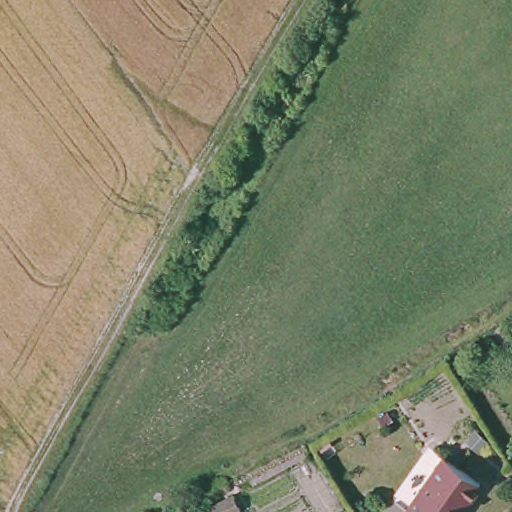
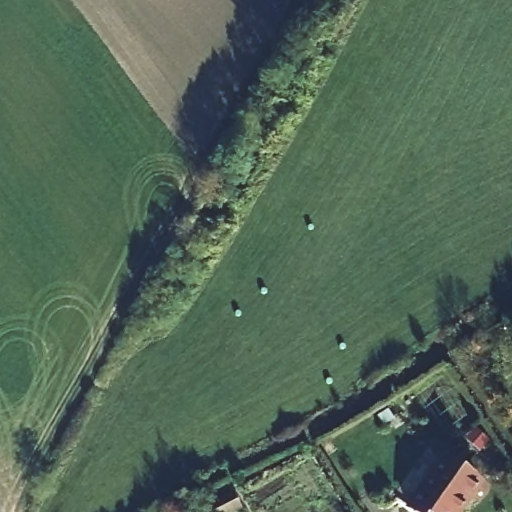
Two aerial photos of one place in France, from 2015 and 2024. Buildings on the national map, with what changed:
unchanged [(464,512),(408,512),(403,509),(439,455),(449,461),(483,483),(464,512)]
unchanged [(346,512),(316,512),(290,471),(312,457),(346,512)]

